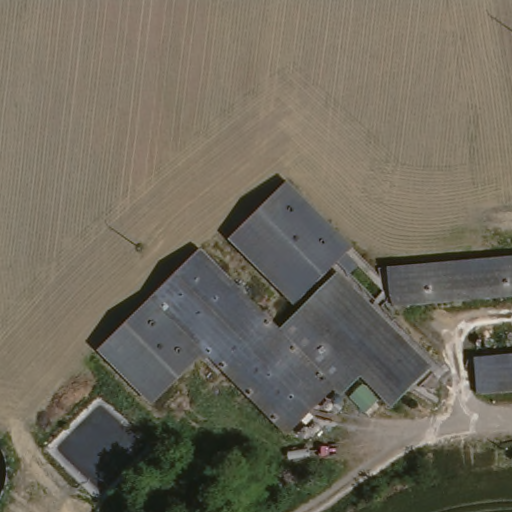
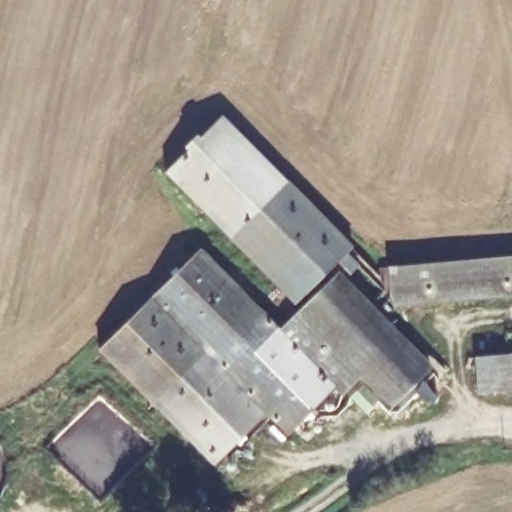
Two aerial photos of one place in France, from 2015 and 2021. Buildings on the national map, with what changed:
new [(231,233),(226,237),(164,172),(186,150),(184,149),(197,136),(199,139),(224,116),(289,180),(231,233)]
unchanged [(295,299),(263,267),(231,233),(289,180),(349,244),(295,299)]
unchanged [(397,400),(365,370),(342,392),(337,389),(290,432),(207,349),(155,297),(201,250),(278,326),(340,274),(433,366),(397,400)]
unchanged [(389,261),(512,255),(512,295),(393,301),(389,261)]
unchanged [(207,349),(152,402),(98,350),(155,297),(207,349)]
new [(268,410),(213,463),(152,402),(207,349),(268,410)]
unchanged [(512,352),(512,389),(484,390),(481,354),(512,352)]

